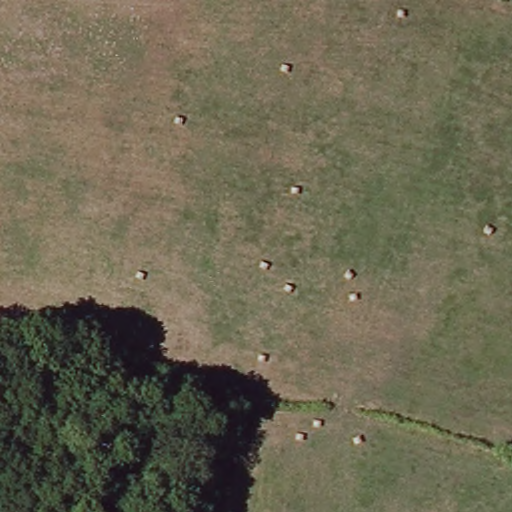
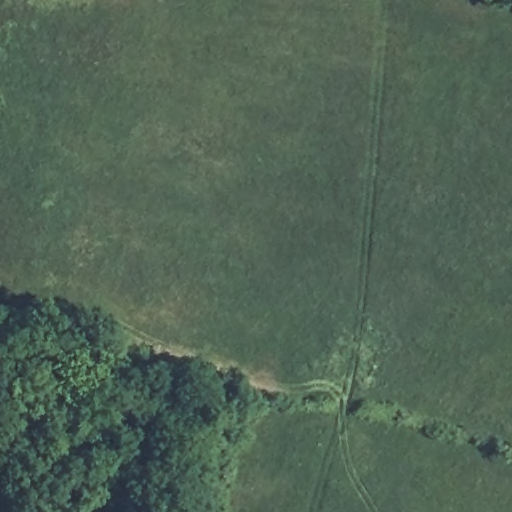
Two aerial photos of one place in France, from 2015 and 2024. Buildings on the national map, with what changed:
[]

